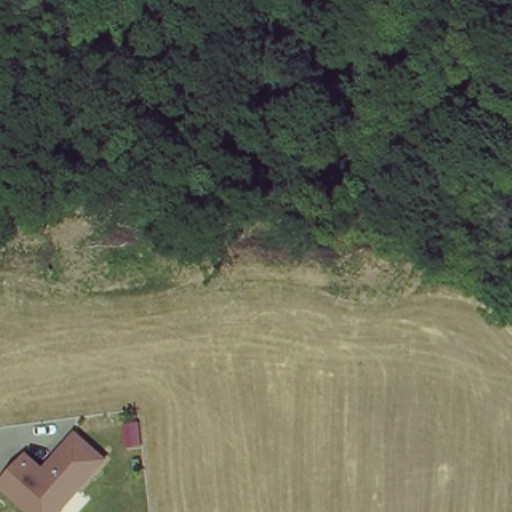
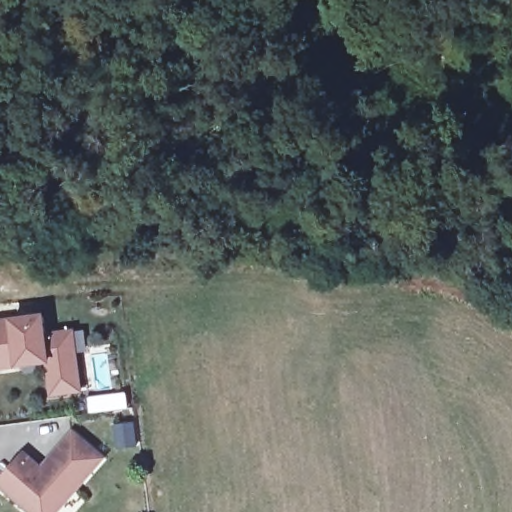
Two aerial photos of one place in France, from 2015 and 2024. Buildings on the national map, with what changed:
new [(16,368),(0,371),(0,319),(9,318),(46,313),(48,332),(74,329),(83,393),(51,397),(48,364),(16,368)]
unchanged [(27,512),(0,492),(0,472),(21,446),(41,461),(69,428),(108,457),(60,512),(27,512)]

